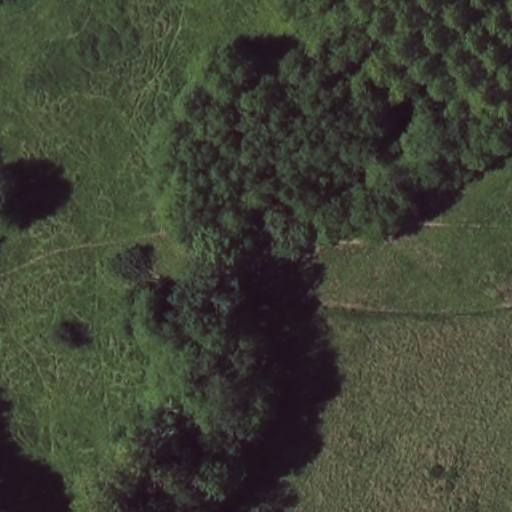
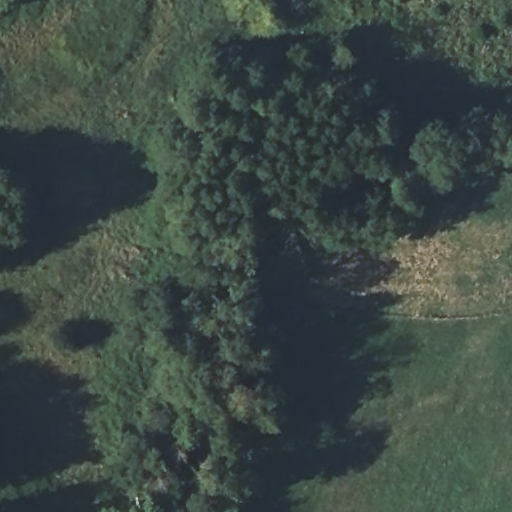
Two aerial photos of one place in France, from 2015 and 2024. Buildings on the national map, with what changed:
[]

